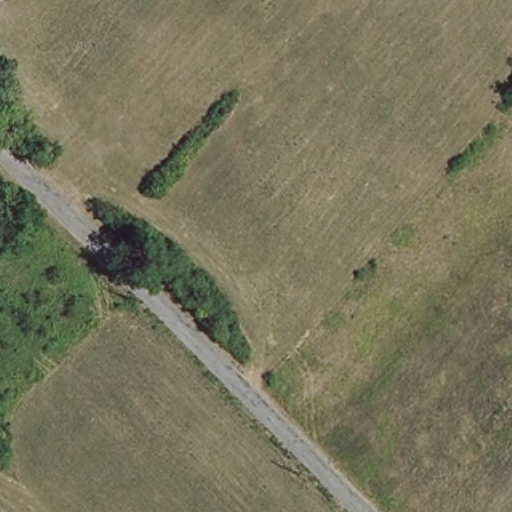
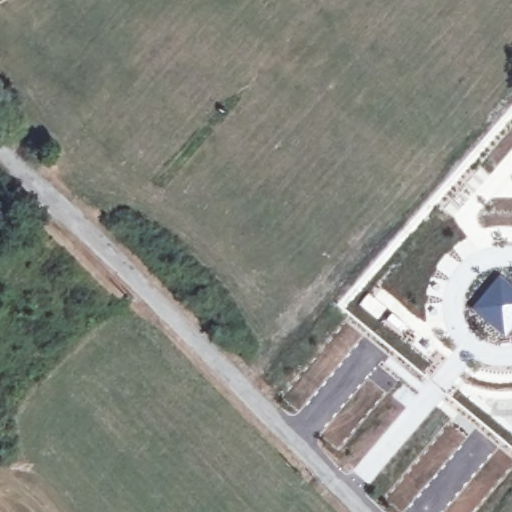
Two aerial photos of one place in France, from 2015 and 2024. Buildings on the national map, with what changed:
unchanged [(36,157),(41,162),(36,166),(32,162),(36,157)]
new [(512,284),(512,329),(504,337),(469,308),(499,273),(512,284)]

